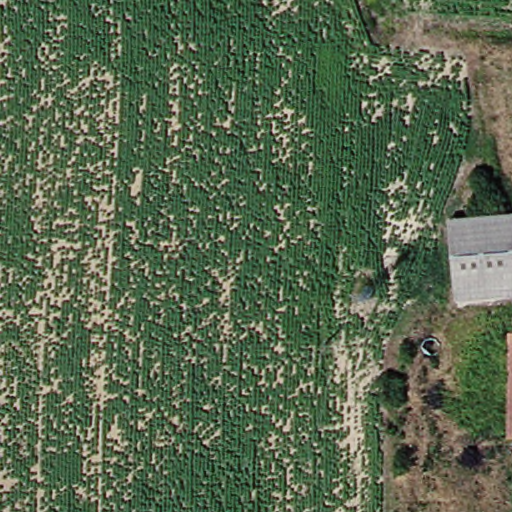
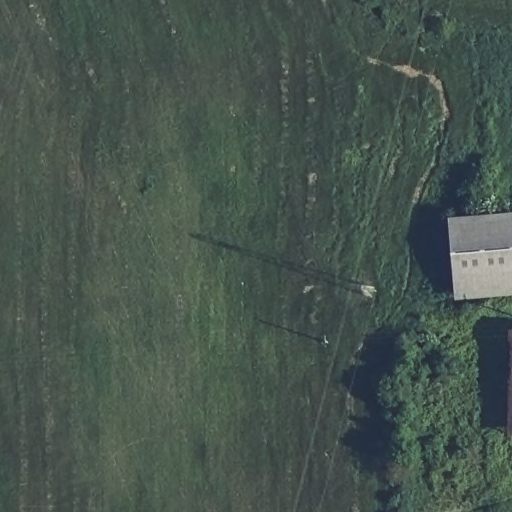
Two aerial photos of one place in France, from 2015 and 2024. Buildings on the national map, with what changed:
unchanged [(512,215),(512,300),(458,305),(452,220),(512,215)]
unchanged [(511,332),(512,333),(512,433),(511,332)]

